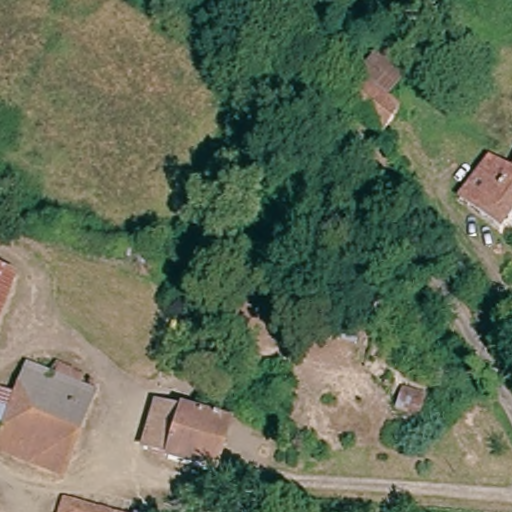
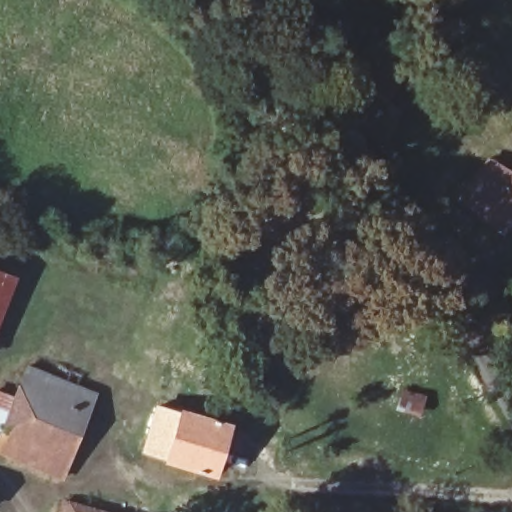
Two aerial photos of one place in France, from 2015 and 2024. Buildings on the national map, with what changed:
unchanged [(397,66),(394,73),(404,80),(391,100),(404,113),(381,138),(350,113),(388,63),(397,66)]
unchanged [(456,198),(488,158),(511,170),(512,168),(512,216),(501,230),(456,198)]
unchanged [(19,278),(0,327),(0,271),(19,278)]
unchanged [(0,458),(0,396),(8,399),(19,371),(86,399),(53,478),(0,458)]
unchanged [(181,414),(182,409),(232,424),(216,476),(165,461),(167,453),(144,446),(156,406),(181,414)]
unchanged [(77,512),(81,502),(110,512),(77,512)]

